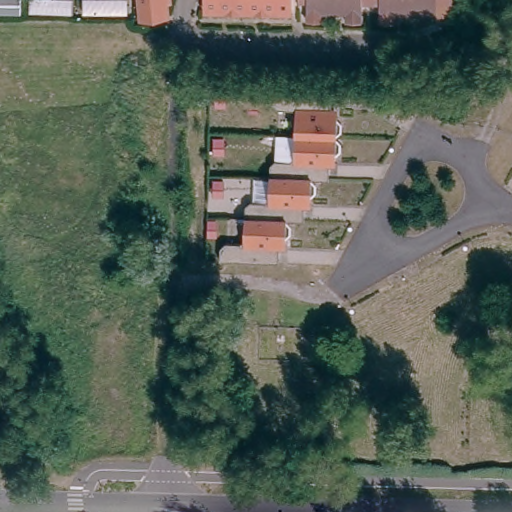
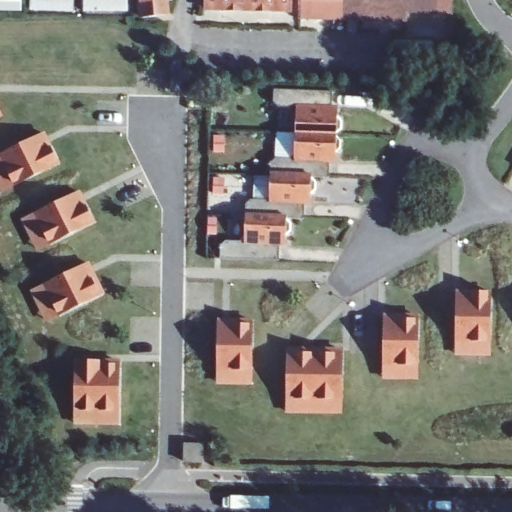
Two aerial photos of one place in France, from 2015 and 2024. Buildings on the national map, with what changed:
unchanged [(158,19),(135,21),(132,0),(156,0),(158,19)]
unchanged [(206,0),(292,0),(292,8),(206,6),(206,0)]
unchanged [(361,18),(347,17),(347,9),(325,8),(325,17),(310,17),(310,0),(362,0),(361,18)]
unchanged [(448,10),(395,10),(395,18),(380,18),(381,0),(455,0),(455,10),(448,10)]
unchanged [(273,90),(331,92),(331,107),(336,109),(336,118),(340,122),(340,129),(335,133),(335,135),(335,137),(340,141),(339,149),(335,153),(335,162),(329,163),(329,177),(311,177),(314,183),(314,191),(310,194),(310,204),(304,205),(304,219),(286,219),(286,222),(290,226),(290,232),(286,237),(285,246),(280,247),(279,261),(253,260),(220,259),(221,248),(226,243),(240,243),(244,240),(245,217),(245,206),(251,201),(265,202),(268,198),(270,176),(270,163),(275,159),(290,159),(293,156),(294,134),(295,111),(291,108),(277,108),(272,102),(273,90)]
new [(50,149),(57,162),(56,163),(57,166),(14,187),(2,193),(0,189),(0,157),(42,136),(50,149)]
new [(78,194),(85,208),(86,207),(93,220),(92,221),(93,224),(50,245),(38,251),(23,221),(35,215),(78,194)]
new [(87,265),(102,296),(59,317),(47,323),(32,292),(44,286),(87,265)]
new [(456,295),(490,296),(489,341),(488,354),(455,353),(455,340),(456,295)]
new [(384,318),(417,319),(417,367),(417,380),(383,380),(383,367),(384,318)]
new [(218,323),(252,324),(251,372),(251,385),(217,384),(217,371),(218,323)]
new [(287,352),(342,353),(341,401),(341,414),(286,413),(286,400),(287,352)]
new [(119,424),(75,425),(75,358),(121,358),(119,424)]
unchanged [(195,448),(212,449),(211,466),(194,466),(195,448)]

